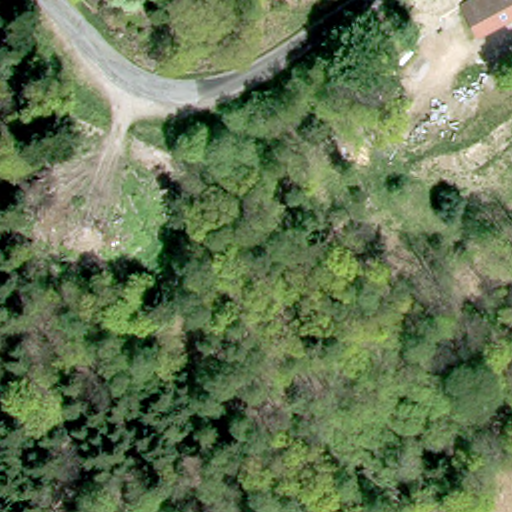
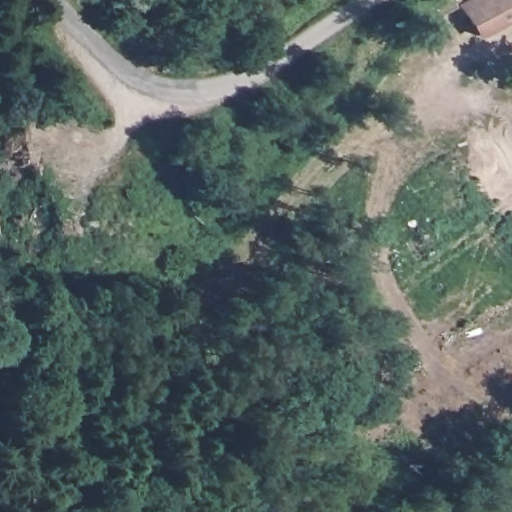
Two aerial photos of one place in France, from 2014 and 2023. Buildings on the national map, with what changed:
unchanged [(512,35),(492,47),(480,25),(512,6),(512,35)]

